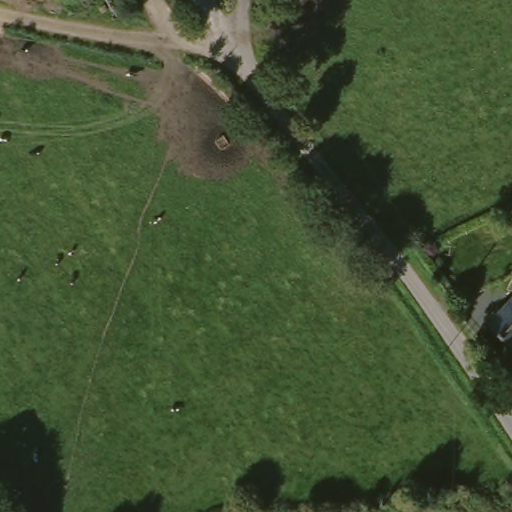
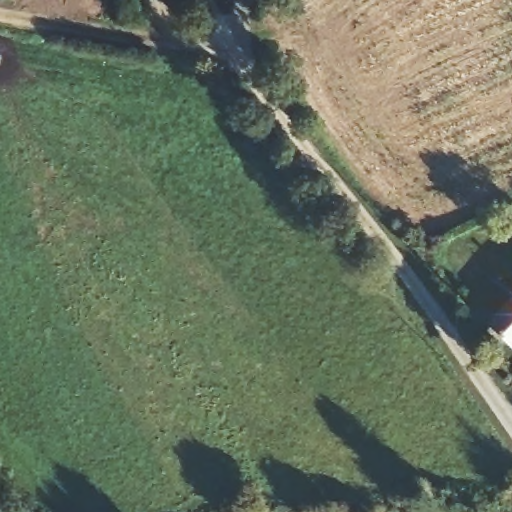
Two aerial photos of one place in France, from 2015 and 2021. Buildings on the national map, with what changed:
unchanged [(512,292),(512,343),(511,345),(485,320),(512,292)]

